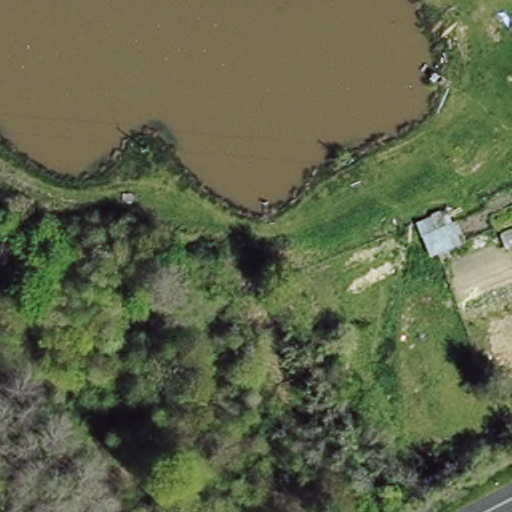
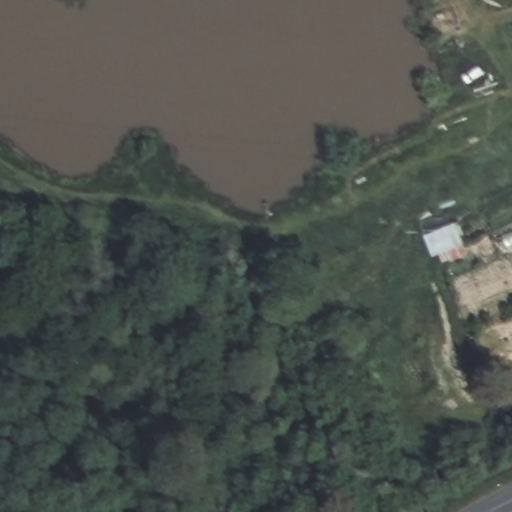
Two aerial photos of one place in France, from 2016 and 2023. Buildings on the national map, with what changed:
unchanged [(435,253),(431,254),(416,220),(443,209),(447,220),(461,219),(461,257),(441,265),(435,253)]

